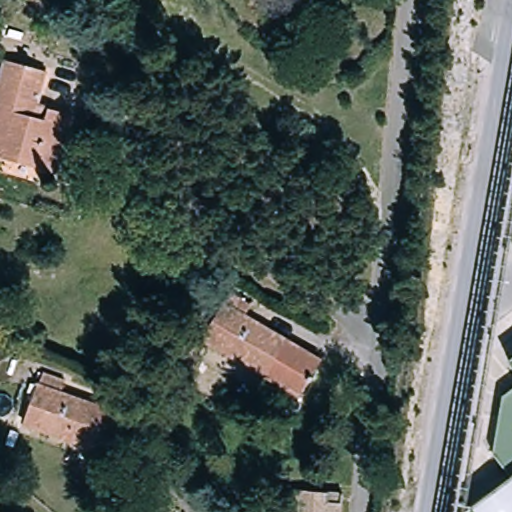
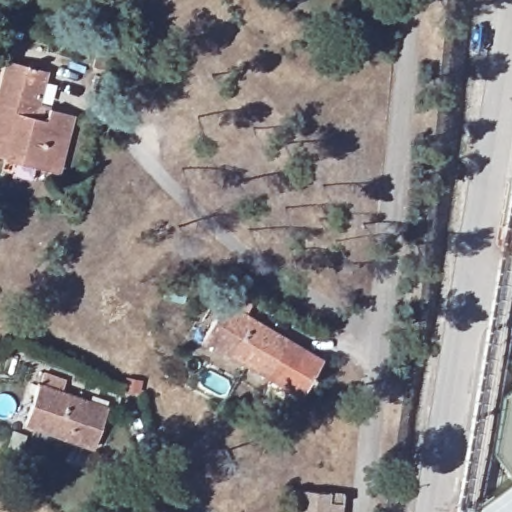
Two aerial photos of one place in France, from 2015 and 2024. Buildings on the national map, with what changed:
unchanged [(106,72),(93,69),(98,47),(111,50),(106,72)]
unchanged [(0,158),(0,62),(1,61),(41,72),(32,106),(68,115),(53,167),(52,172),(0,158)]
unchanged [(322,361),(301,396),(203,338),(224,304),(225,305),(231,293),(252,306),(245,317),(322,361)]
unchanged [(512,357),(512,367),(508,361),(512,357)]
unchanged [(93,447),(24,422),(38,385),(40,385),(44,373),(66,381),(61,393),(107,410),(93,447)]
unchanged [(509,477),(492,453),(502,395),(512,387),(512,512),(465,512),(465,510),(509,477)]
unchanged [(15,447),(6,445),(11,429),(20,432),(15,447)]
unchanged [(285,512),(288,488),(343,495),(341,512),(285,512)]

